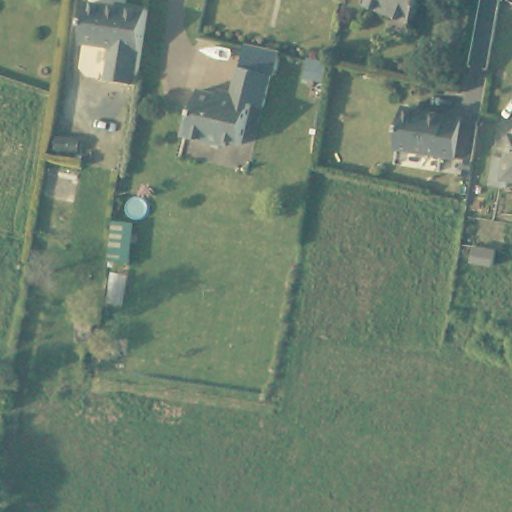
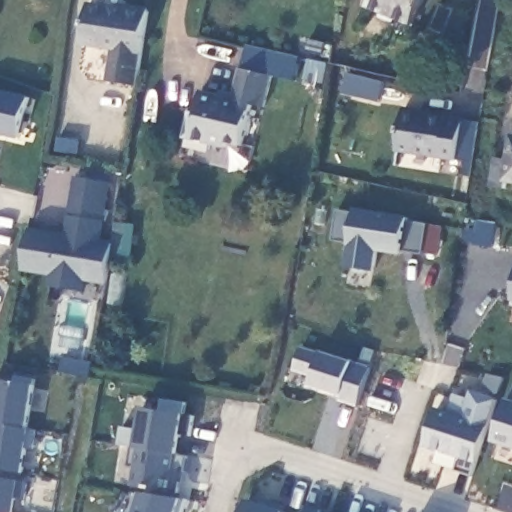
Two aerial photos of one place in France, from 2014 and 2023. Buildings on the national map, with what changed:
unchanged [(413,21),(394,13),(391,19),(382,16),(385,10),(368,3),(369,0),(422,0),(413,21)]
unchanged [(106,80),(110,47),(84,44),(88,6),(122,10),(123,4),(141,6),(147,7),(134,83),(130,83),(106,80)]
unchanged [(234,100),(243,65),(279,74),(270,111),(254,106),(244,145),(229,141),(227,149),(180,138),(188,106),(195,108),(199,91),(234,100)]
new [(0,134),(0,89),(29,95),(18,139),(0,134)]
unchanged [(406,107),(425,111),(424,117),(467,123),(478,125),(475,146),(472,163),(400,149),(406,107)]
unchanged [(509,178),(507,187),(490,184),(496,155),(511,158),(512,152),(512,178),(509,178)]
new [(101,239),(112,240),(105,284),(86,282),(84,290),(46,284),(48,275),(23,272),(30,227),(63,232),(73,176),(109,183),(101,239)]
new [(439,255),(401,252),(401,255),(379,252),(375,270),(346,266),(349,240),(332,240),(335,210),(354,211),(355,208),(407,216),(406,220),(426,223),(442,226),(439,255)]
new [(322,352),(351,360),(359,363),(364,347),(376,351),(357,407),(338,401),(340,396),(308,386),(312,378),(293,371),(301,345),(322,352)]
new [(0,380),(35,385),(24,472),(0,468),(0,380)]
new [(470,474),(434,462),(438,451),(423,446),(435,407),(448,411),(454,393),(467,397),(470,388),(497,399),(470,474)]
new [(133,447),(119,445),(121,426),(139,429),(141,406),(163,409),(161,398),(186,403),(185,416),(194,417),(191,436),(181,435),(178,453),(133,447)]
new [(494,441),(508,398),(512,399),(512,447),(494,441)]
new [(135,465),(130,464),(133,447),(188,455),(183,482),(180,482),(178,492),(132,486),(135,465)]
new [(16,498),(13,512),(0,512),(0,478),(28,483),(26,499),(16,498)]
new [(135,512),(140,494),(182,499),(189,502),(185,512),(135,512)]
new [(285,512),(243,512),(248,500),(285,512)]

